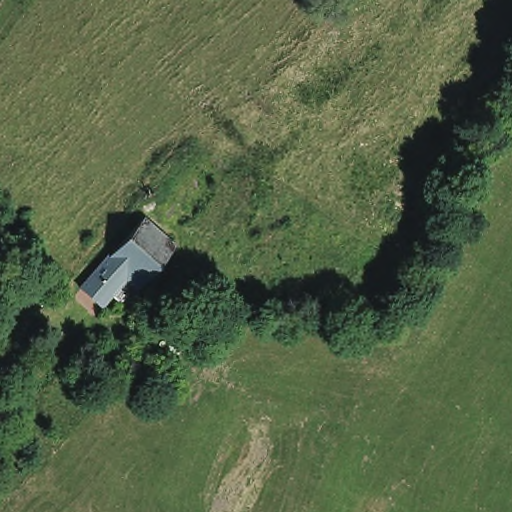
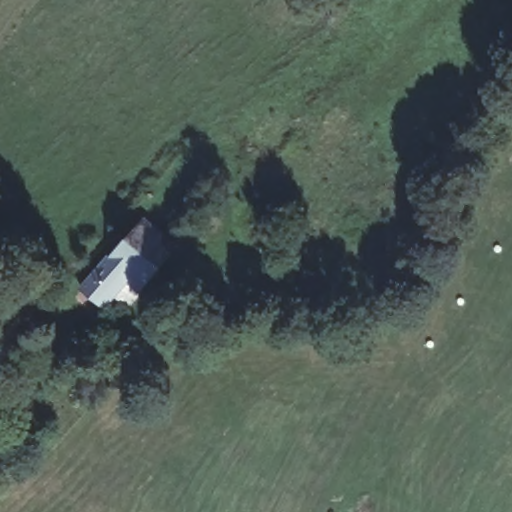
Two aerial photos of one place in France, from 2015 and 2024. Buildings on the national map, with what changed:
unchanged [(113,258),(146,219),(180,248),(147,285),(113,258)]
unchanged [(104,304),(86,290),(113,258),(130,273),(104,304)]

